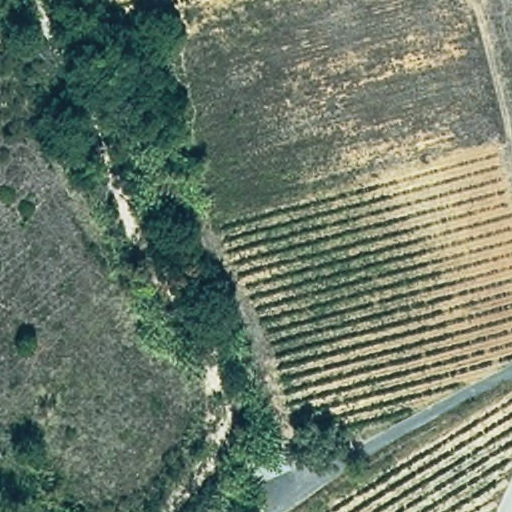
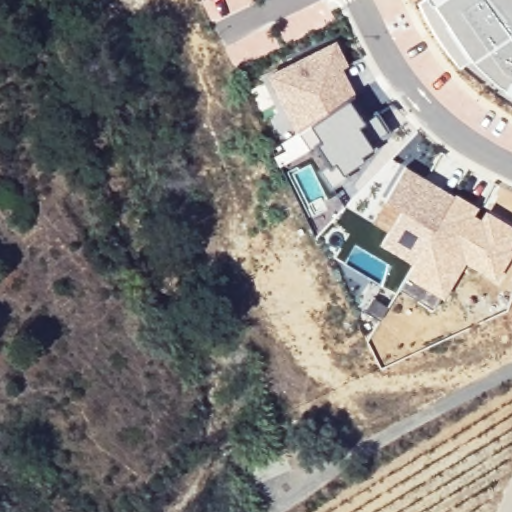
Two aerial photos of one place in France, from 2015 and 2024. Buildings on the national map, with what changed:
new [(504,89),(505,87),(495,80),(472,57),(459,67),(431,28),(417,2),(422,0),(512,0),(512,93),(504,89)]
new [(266,77),(330,46),(342,68),(335,71),(349,97),(294,134),(266,77)]
new [(433,184),(430,187),(437,191),(440,187),(454,196),(414,263),(382,243),(402,209),(386,199),(405,167),(433,184)]
new [(474,215),(480,219),(486,211),(512,226),(512,247),(511,249),(512,249),(512,256),(496,282),(464,263),(443,299),(439,297),(432,307),(399,288),(414,263),(454,196),(456,193),(479,207),(474,215)]

